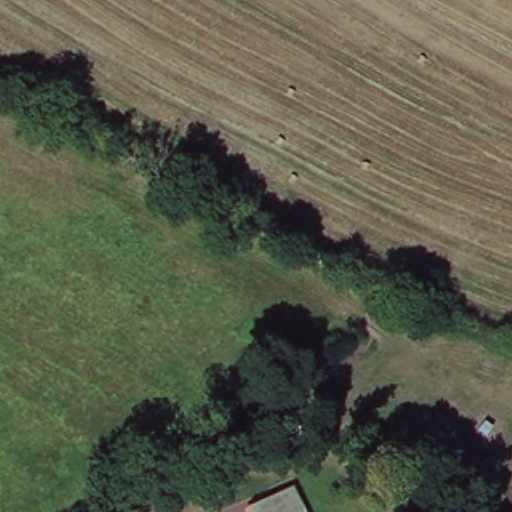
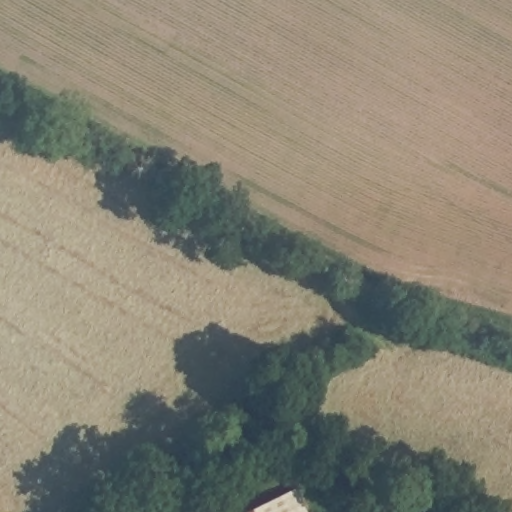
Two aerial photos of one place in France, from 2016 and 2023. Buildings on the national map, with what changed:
unchanged [(295,490),(305,512),(257,512),(256,509),(295,490)]

